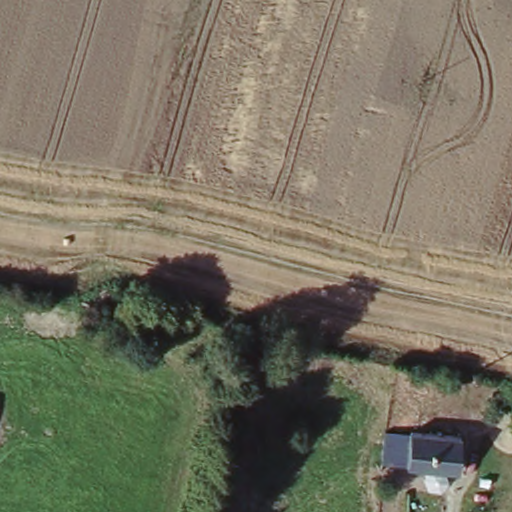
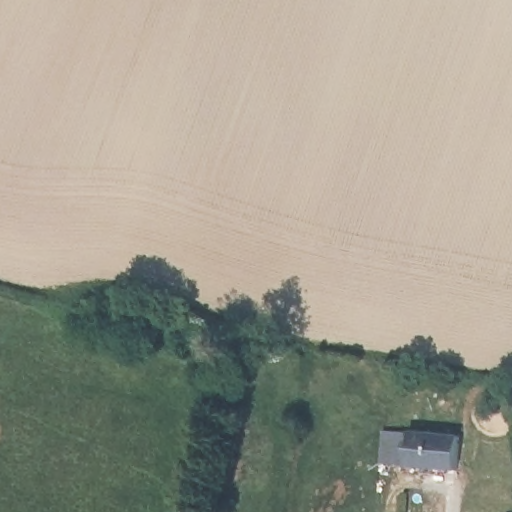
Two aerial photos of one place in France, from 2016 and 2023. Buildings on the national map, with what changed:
unchanged [(449,442),(451,426),(466,428),(466,435),(464,461),(453,460),(453,474),(401,471),(401,440),(449,442)]

